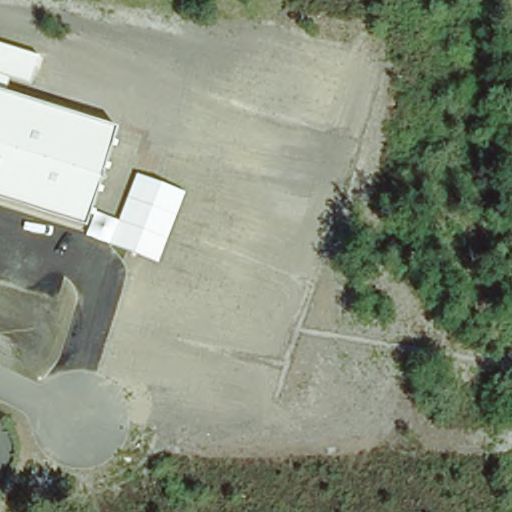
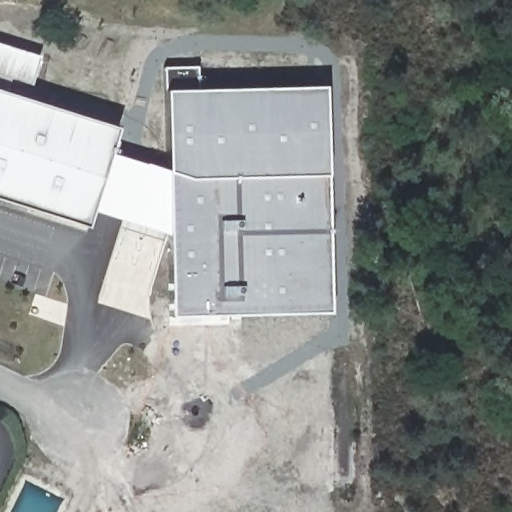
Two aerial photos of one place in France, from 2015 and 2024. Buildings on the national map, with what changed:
unchanged [(0,199),(0,43),(39,55),(29,85),(10,78),(5,93),(116,128),(85,225),(0,199)]
new [(166,236),(90,210),(109,152),(142,163),(143,162),(165,170),(161,90),(162,67),(196,66),(192,88),(322,85),(327,312),(169,314),(166,236)]

